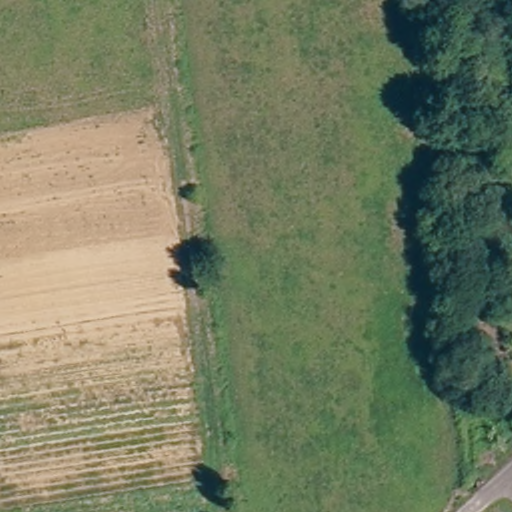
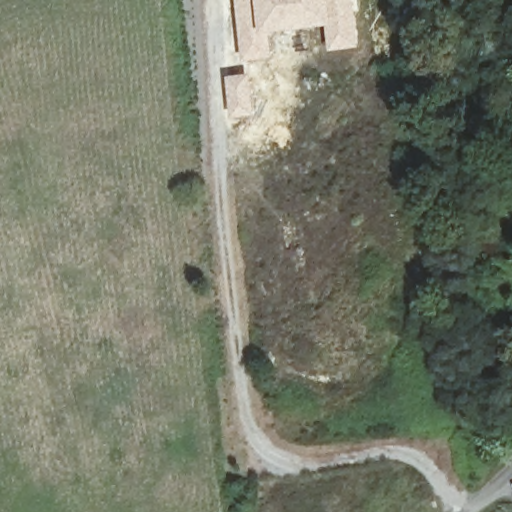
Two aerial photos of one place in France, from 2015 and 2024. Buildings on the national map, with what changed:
new [(335,49),(334,28),(269,35),(270,55),(247,57),(240,0),(352,0),(358,45),(335,49)]

